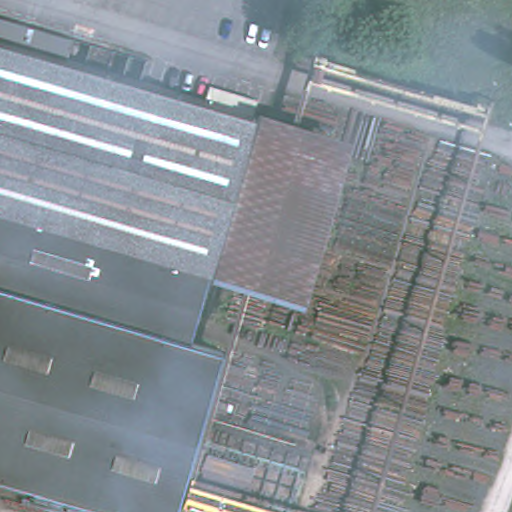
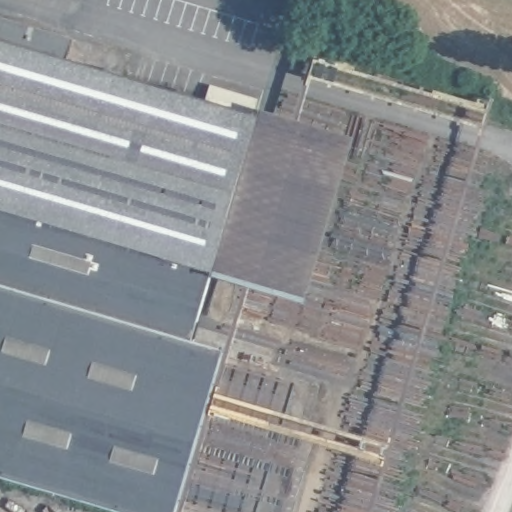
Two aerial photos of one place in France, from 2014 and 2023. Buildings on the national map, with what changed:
unchanged [(77,40),(72,61),(262,117),(216,273),(0,210),(0,17),(77,40)]
unchanged [(353,145),(305,299),(216,273),(262,117),(353,145)]
unchanged [(229,351),(179,512),(122,512),(0,475),(0,210),(216,273),(196,342),(229,351)]

